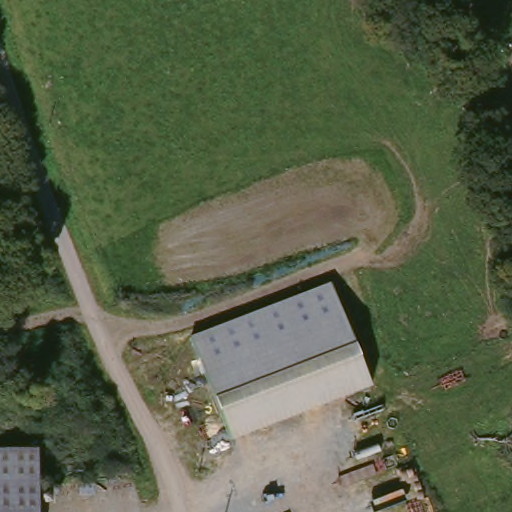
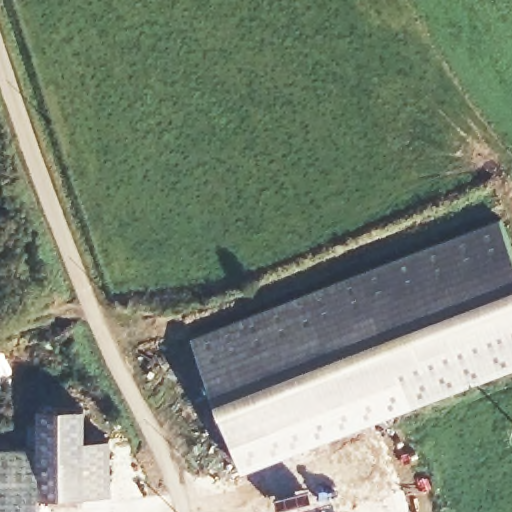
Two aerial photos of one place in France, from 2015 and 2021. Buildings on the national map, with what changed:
new [(501,219),(512,248),(512,367),(410,406),(399,378),(373,387),(332,282),(501,219)]
unchanged [(373,387),(232,442),(191,337),(332,282),(373,387)]
new [(37,482),(37,447),(38,409),(85,408),(86,441),(111,441),(111,494),(37,495),(37,482)]
unchanged [(37,447),(37,482),(37,512),(0,512),(0,447),(37,447)]

